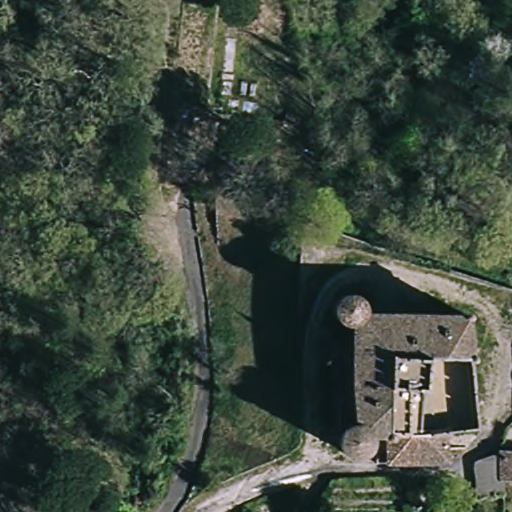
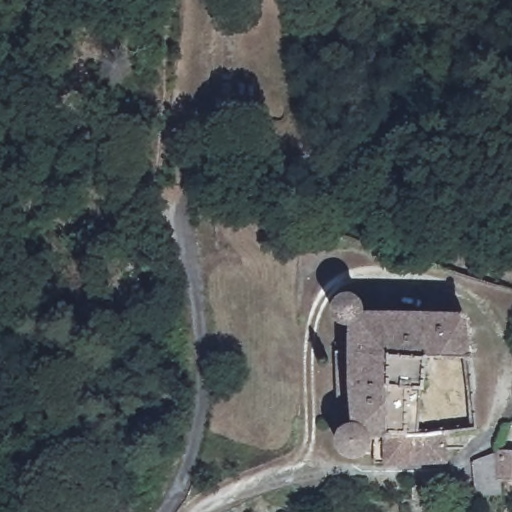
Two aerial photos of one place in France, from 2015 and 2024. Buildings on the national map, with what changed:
unchanged [(392,346),(347,342),(347,335),(347,328),(335,316),(336,305),(343,297),(353,296),(364,303),(370,312),(394,314),(412,313),(413,359),(393,358),(392,346)]
unchanged [(467,314),(468,359),(422,360),(413,359),(412,313),(467,314)]
unchanged [(451,460),(423,459),(379,458),(380,430),(363,430),(350,442),(330,440),(334,334),(347,335),(347,342),(392,346),(393,358),(413,359),(422,360),(422,432),(452,433),(451,460)]
unchanged [(477,458),(512,455),(512,498),(502,498),(475,498),(477,458)]

